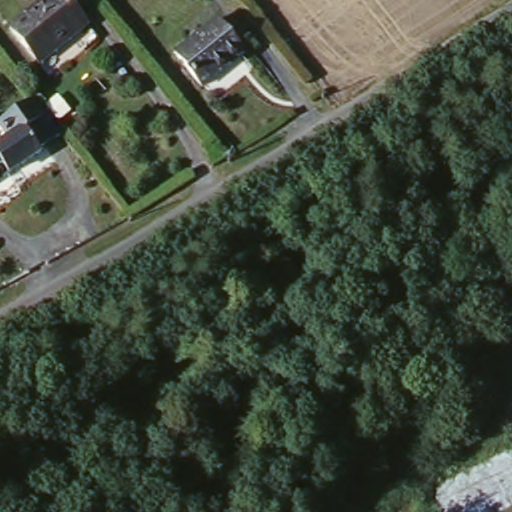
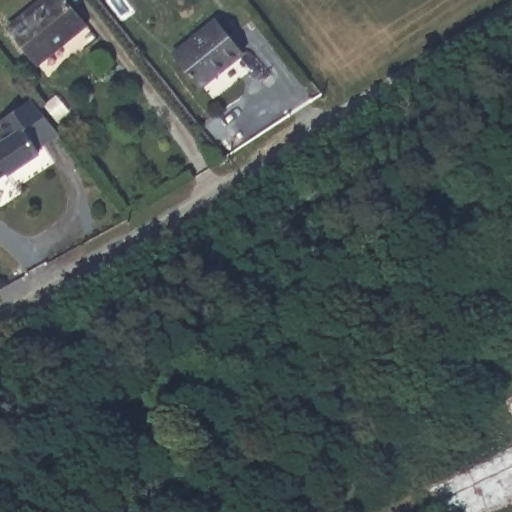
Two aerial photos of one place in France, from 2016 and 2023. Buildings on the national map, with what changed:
unchanged [(42,0),(66,0),(84,24),(36,63),(7,29),(42,0)]
unchanged [(214,17),(242,53),(200,87),(171,49),(214,17)]
unchanged [(10,182),(6,178),(0,182),(0,149),(9,142),(0,132),(0,123),(28,101),(59,139),(10,182)]

